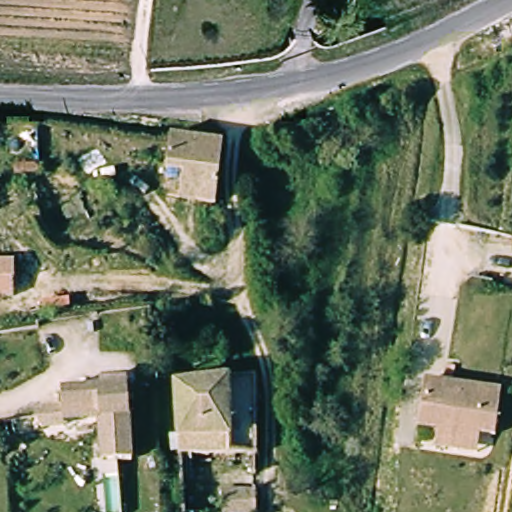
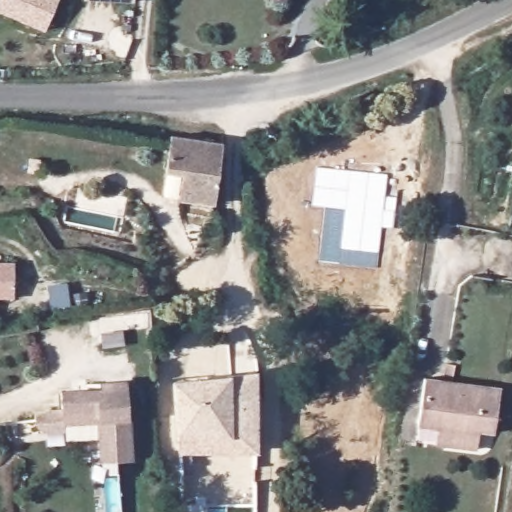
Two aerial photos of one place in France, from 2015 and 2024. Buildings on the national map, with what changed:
new [(61,0),(54,18),(50,29),(35,23),(0,9),(0,0),(61,0)]
new [(112,1),(92,0),(132,0),(132,2),(112,1)]
unchanged [(218,174),(215,204),(178,200),(183,169),(163,166),(166,140),(218,145),(218,174)]
new [(387,174),(386,195),(396,196),(393,227),(382,226),(378,268),(319,262),(324,207),(311,205),(316,166),(387,174)]
unchanged [(17,261),(13,296),(0,295),(0,260),(17,261)]
unchanged [(432,438),(435,422),(415,419),(424,373),(501,386),(493,430),(478,427),(477,430),(474,445),(432,438)]
unchanged [(173,390),(251,383),(255,447),(179,455),(173,390)]
unchanged [(99,445),(100,416),(63,415),(64,385),(131,386),(128,461),(105,461),(98,460),(99,445)]
demolished [(221,486),(256,486),(254,512),(221,512),(221,486)]

